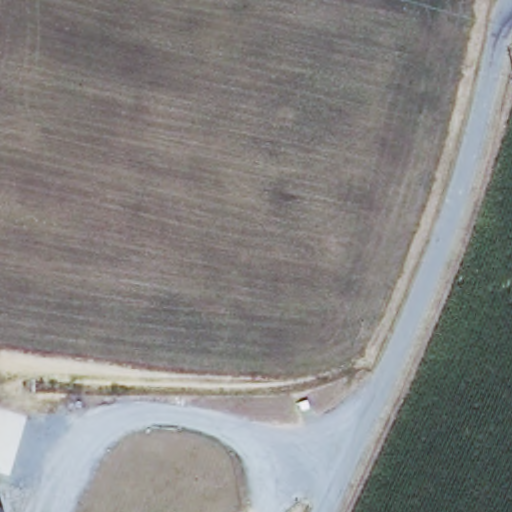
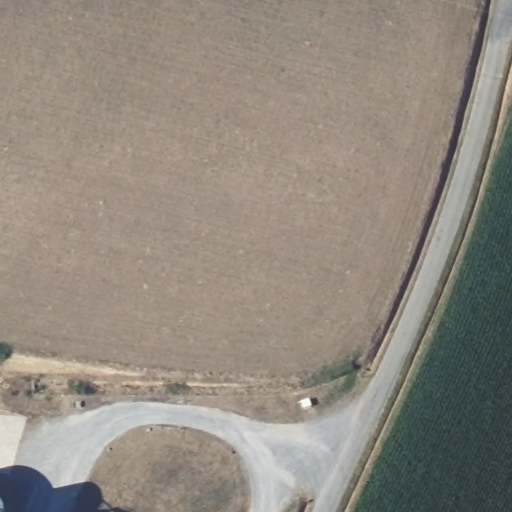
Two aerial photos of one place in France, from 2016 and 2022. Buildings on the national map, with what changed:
unchanged [(7,505),(10,512),(0,512),(0,500),(4,501),(7,505)]

